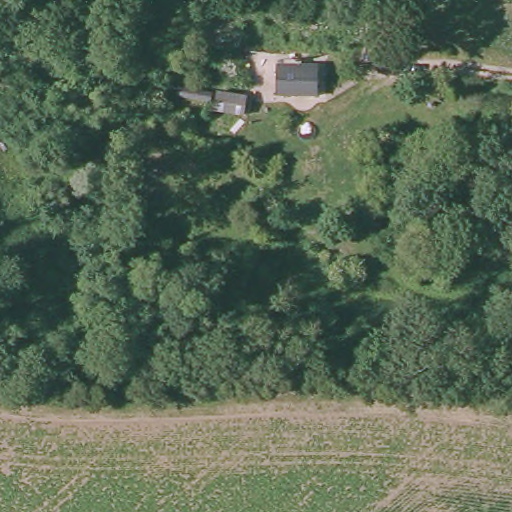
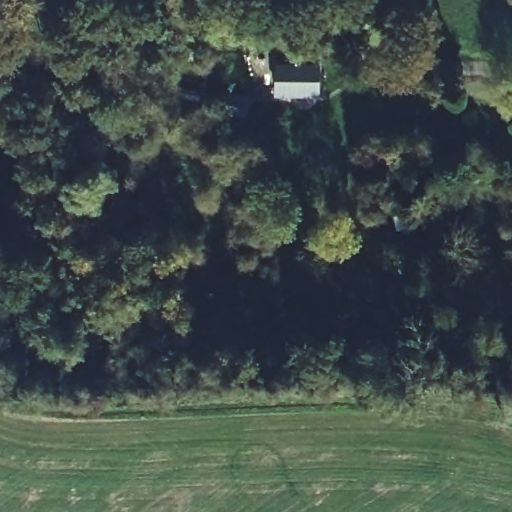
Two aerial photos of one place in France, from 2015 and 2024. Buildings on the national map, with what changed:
unchanged [(317,62),(316,99),(269,96),(271,63),(317,62)]
unchanged [(241,118),(208,114),(209,88),(246,96),(241,118)]

